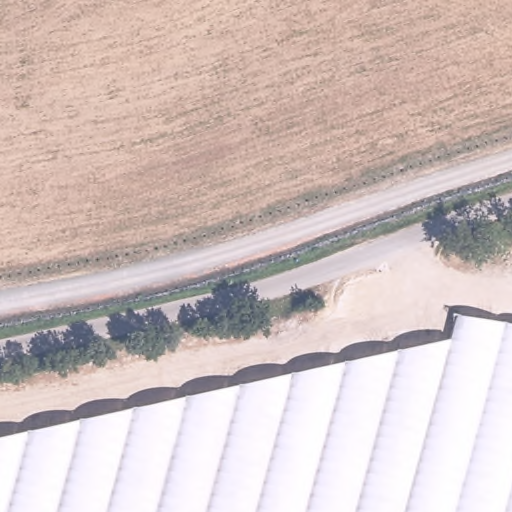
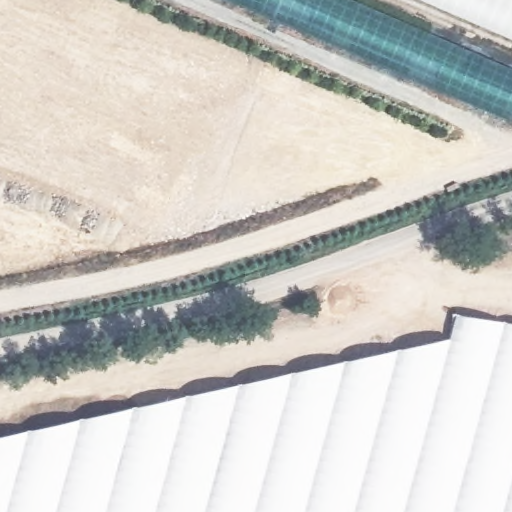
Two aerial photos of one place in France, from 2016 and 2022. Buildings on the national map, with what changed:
new [(231,0),(351,0),(512,69),(512,121),(231,0)]
new [(421,0),(512,0),(512,40),(421,0)]
unchanged [(456,310),(512,319),(512,512),(0,512),(0,438),(448,337),(456,310)]

